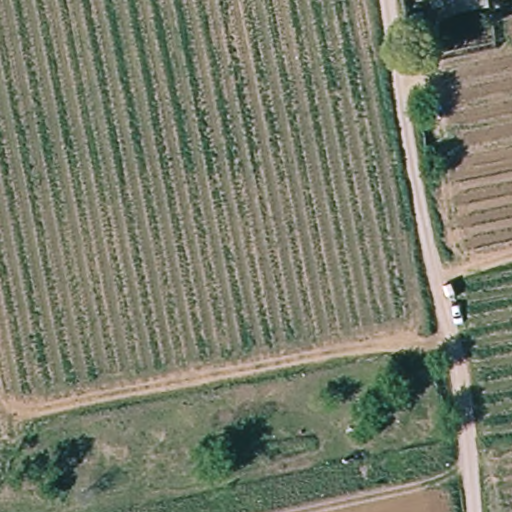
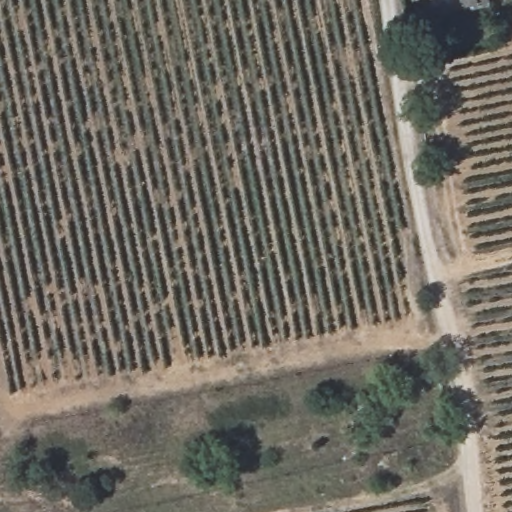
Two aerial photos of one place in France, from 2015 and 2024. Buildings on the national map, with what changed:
unchanged [(404,19),(403,0),(431,0),(432,15),(404,19)]
unchanged [(497,0),(498,5),(457,16),(452,0),(497,0)]

